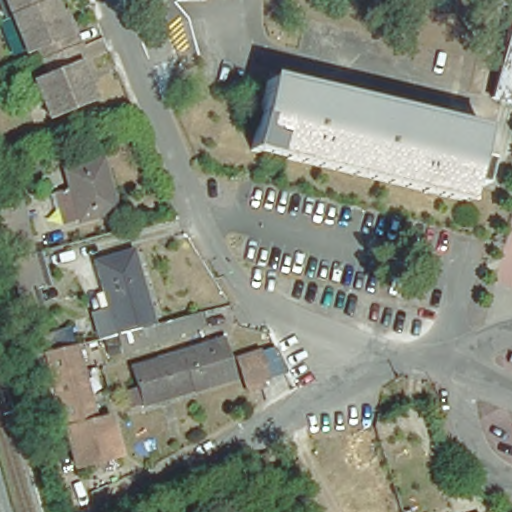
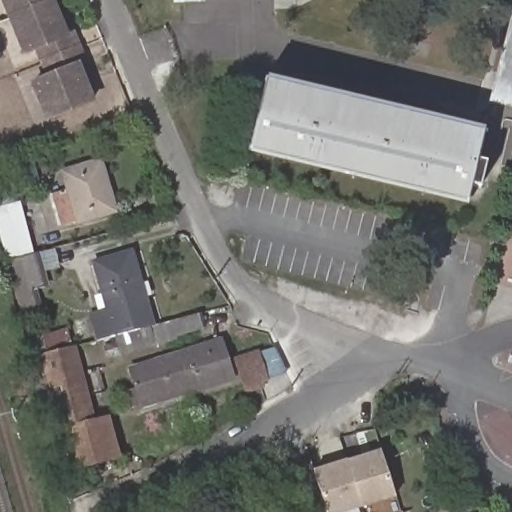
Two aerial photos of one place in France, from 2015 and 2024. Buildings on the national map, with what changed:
unchanged [(21,28),(10,0),(60,0),(65,10),(21,28)]
unchanged [(488,96),(511,7),(512,8),(512,102),(488,96)]
unchanged [(72,27),(80,24),(88,40),(94,55),(57,70),(51,55),(36,62),(21,28),(65,10),(72,27)]
unchanged [(100,69),(108,88),(100,92),(106,106),(61,124),(48,92),(64,86),(57,70),(94,55),(100,69)]
unchanged [(484,129),(466,201),(250,149),(268,78),(484,129)]
unchanged [(101,159),(116,211),(79,222),(64,171),(101,159)]
unchanged [(0,196),(18,191),(21,203),(21,202),(35,253),(6,260),(0,233),(0,196)]
unchanged [(146,325),(110,334),(91,260),(129,250),(151,324),(165,320),(194,313),(198,328),(171,337),(153,343),(146,325)]
unchanged [(6,260),(35,253),(36,252),(45,285),(17,294),(5,261),(6,260)]
unchanged [(181,353),(222,339),(234,378),(193,390),(181,353)]
unchanged [(255,380),(240,385),(229,353),(249,346),(263,341),(276,366),(258,372),(253,373),(255,380)]
unchanged [(103,470),(101,462),(86,466),(68,404),(59,405),(53,382),(59,380),(52,353),(82,345),(90,372),(88,372),(100,419),(116,415),(127,455),(110,460),(113,467),(103,470)]
unchanged [(145,404),(133,368),(181,353),(193,390),(145,404)]
unchanged [(50,359),(56,379),(44,381),(39,361),(50,359)]
new [(381,449),(395,499),(351,512),(328,512),(315,469),(381,449)]
unchanged [(413,512),(401,512),(401,509),(411,506),(413,512)]

